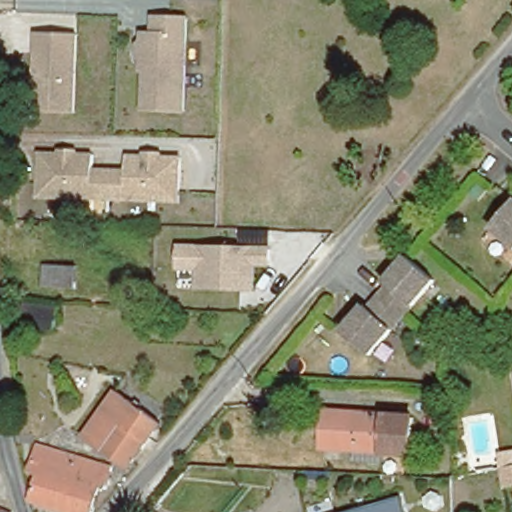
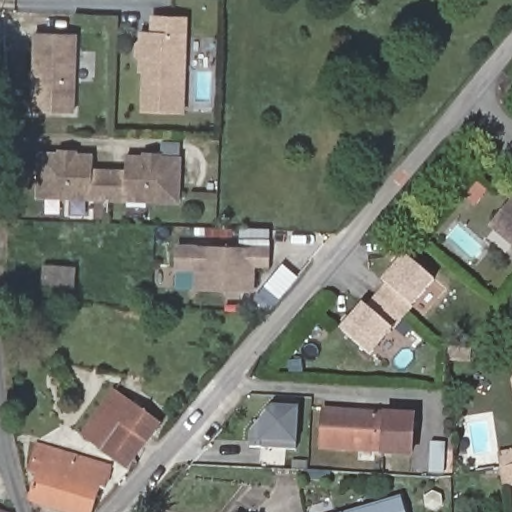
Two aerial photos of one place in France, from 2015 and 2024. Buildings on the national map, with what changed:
unchanged [(154,31),(154,16),(188,17),(183,111),(143,109),(145,57),(142,57),(137,54),(138,44),(142,41),(143,31),(154,31)]
unchanged [(77,33),(73,111),(33,109),(36,31),(77,33)]
unchanged [(182,202),(37,200),(38,150),(94,151),(94,168),(127,168),(126,153),(184,155),(182,202)]
unchanged [(512,201),(512,245),(490,226),(512,201)]
unchanged [(272,269),(258,267),(256,291),(196,290),(196,271),(176,271),(177,244),(273,246),(272,269)]
unchanged [(341,325),(364,299),(367,302),(377,291),(387,280),(383,277),(406,251),(433,276),(368,349),(341,325)]
unchanged [(76,265),(75,288),(42,286),(43,264),(76,265)]
unchanged [(512,372),(512,381),(510,372),(512,372)]
unchanged [(128,467),(83,434),(114,391),(159,422),(128,467)]
unchanged [(411,450),(383,448),(382,458),(351,456),(351,443),(323,441),(325,404),(413,409),(411,450)]
new [(249,448),(250,431),(273,406),(298,408),(296,451),(249,448)]
unchanged [(28,471),(36,444),(110,466),(104,487),(99,485),(92,512),(73,512),(30,499),(37,473),(28,471)]
unchanged [(512,478),(504,479),(499,459),(512,458),(512,478)]
unchanged [(402,512),(341,512),(397,495),(402,512)]
unchanged [(9,506),(11,512),(0,512),(0,503),(9,506)]

